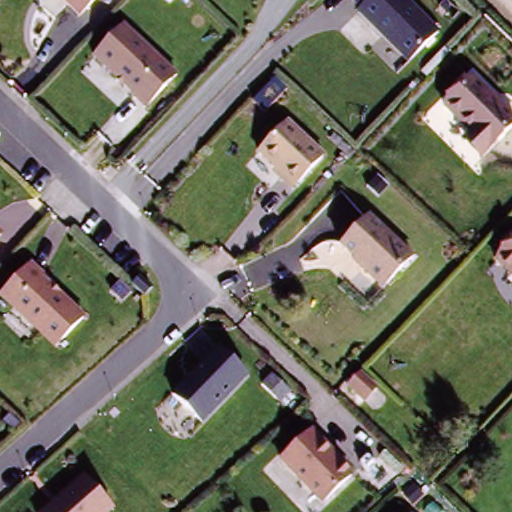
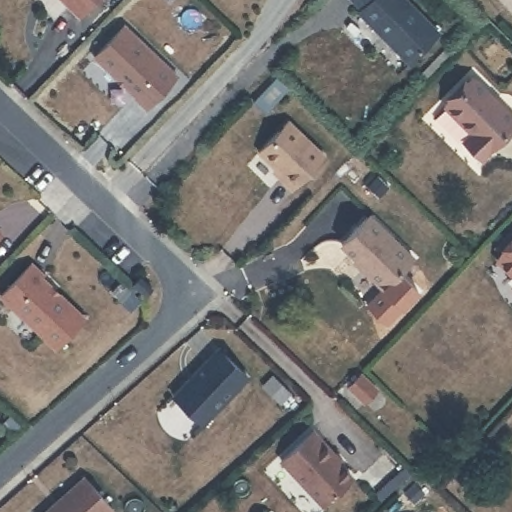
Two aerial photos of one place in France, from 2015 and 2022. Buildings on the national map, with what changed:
unchanged [(79,21),(59,0),(102,0),(79,21)]
unchanged [(411,63),(359,13),(362,10),(353,0),(406,0),(440,34),(411,63)]
unchanged [(144,107),(133,96),(135,94),(96,55),(127,25),(177,75),(144,107)]
unchanged [(466,137),(471,132),(443,106),(471,77),(512,115),(512,126),(485,155),(481,159),(463,141),(466,137)]
unchanged [(325,157),(293,191),(281,180),(283,176),(259,153),(288,122),(325,157)]
unchanged [(410,260),(379,290),(359,270),(361,267),(339,245),(367,216),(410,260)]
unchanged [(512,244),(512,274),(497,258),(512,244)]
unchanged [(33,263),(44,277),(46,275),(86,318),(58,348),(3,295),(33,263)]
unchanged [(172,398),(217,351),(246,380),(201,427),(172,398)]
unchanged [(358,365),(375,381),(363,394),(346,378),(358,365)]
unchanged [(280,462),(312,432),(334,456),(332,458),(352,480),(322,507),(280,462)]
unchanged [(52,512),(87,480),(117,511),(116,512),(52,512)]

